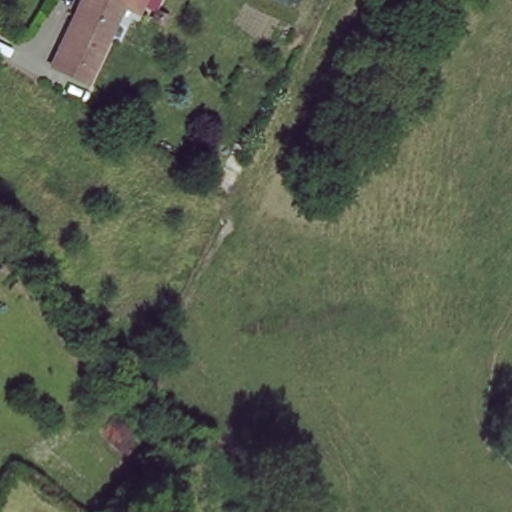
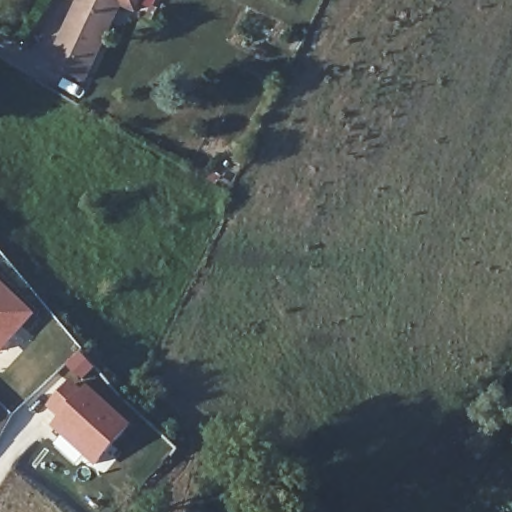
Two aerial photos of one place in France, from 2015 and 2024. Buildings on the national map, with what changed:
unchanged [(107,32),(86,79),(51,64),(80,0),(117,0),(103,30),(107,32)]
unchanged [(119,0),(139,0),(136,7),(119,0)]
new [(0,353),(0,283),(35,316),(0,353)]
new [(54,417),(47,410),(77,381),(65,365),(80,351),(96,370),(83,382),(132,426),(92,467),(46,425),(54,417)]

